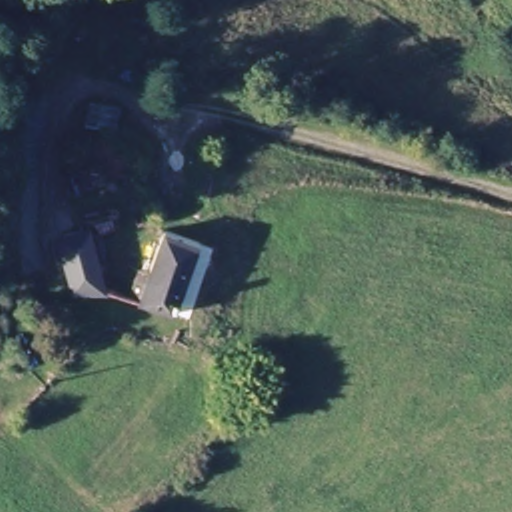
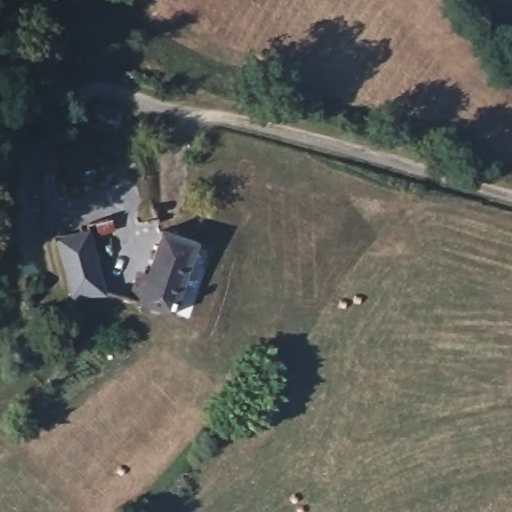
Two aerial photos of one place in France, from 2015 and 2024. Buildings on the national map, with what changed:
unchanged [(124,111),(120,135),(86,129),(89,104),(124,111)]
unchanged [(91,230),(105,284),(73,292),(60,237),(91,230)]
unchanged [(164,232),(203,246),(182,303),(193,307),(187,321),(139,301),(164,232)]

